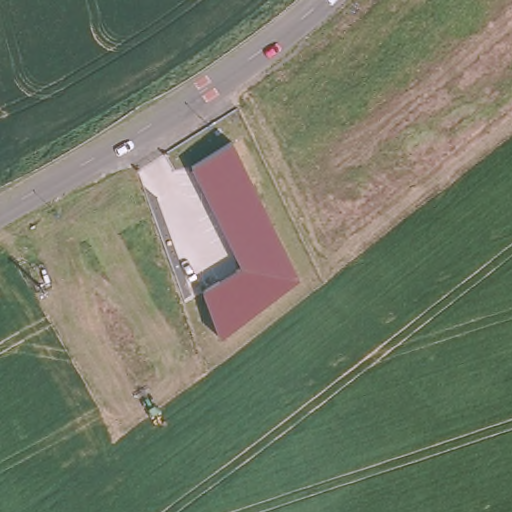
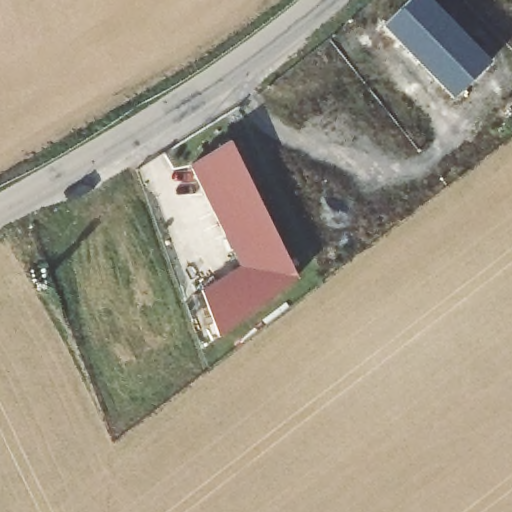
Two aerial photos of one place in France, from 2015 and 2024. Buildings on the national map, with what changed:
new [(488,60),(452,96),(382,26),(412,0),(431,0),(488,60)]
unchanged [(299,278),(217,336),(200,290),(242,263),(192,165),(229,141),(299,278)]

